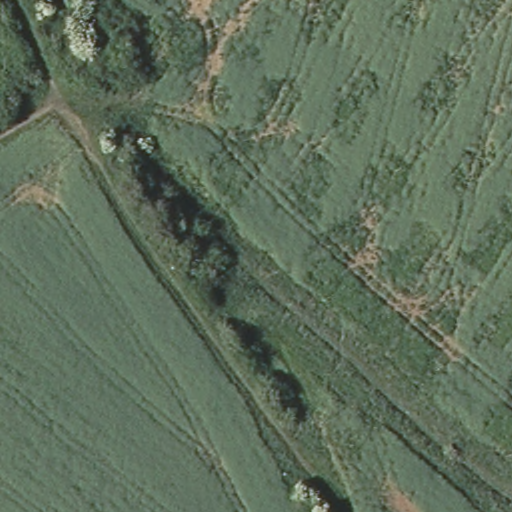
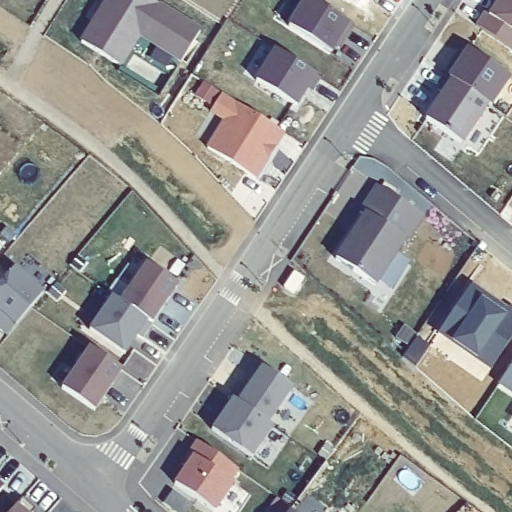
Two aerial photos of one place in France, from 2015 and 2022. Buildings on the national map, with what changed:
new [(121,68),(81,41),(106,0),(152,0),(201,30),(180,63),(140,40),(121,68)]
new [(311,0),(352,26),(344,39),(339,37),(329,52),(288,27),(304,0),(311,0)]
new [(348,0),(361,0),(358,6),(348,0)]
new [(500,0),(512,0),(512,32),(490,16),(500,0)]
new [(466,50),(468,47),(512,77),(493,107),(448,76),(444,73),(458,51),(466,50)]
new [(256,80),(276,49),(317,75),(298,107),(256,80)]
new [(488,106),(461,145),(426,122),(443,96),(438,92),(447,78),(488,106)]
new [(255,179),(208,149),(226,121),(212,112),(223,95),(284,133),(275,147),(268,159),(255,179)]
new [(365,217),(360,213),(377,187),(422,217),(405,242),(404,242),(375,286),(336,260),(365,217)]
new [(112,296),(120,301),(146,263),(179,285),(145,334),(142,332),(124,356),(91,332),(112,296)]
new [(15,268),(44,292),(15,326),(8,336),(0,329),(0,285),(15,268)]
new [(493,368),(428,325),(463,275),(512,309),(512,338),(493,368)]
new [(123,370),(95,412),(63,388),(91,348),(123,370)]
new [(512,365),(512,395),(498,385),(512,365)]
new [(294,390),(268,423),(274,427),(251,457),(213,429),(234,398),(230,396),(241,382),(250,386),(263,367),(294,390)]
new [(229,482),(234,485),(215,511),(174,482),(186,465),(182,462),(197,441),(237,468),(229,482)]
new [(7,483),(0,492),(0,477),(7,483)]
new [(17,504),(23,498),(37,510),(35,512),(10,512),(17,504)]
new [(297,512),(288,512),(291,507),(297,512)]

